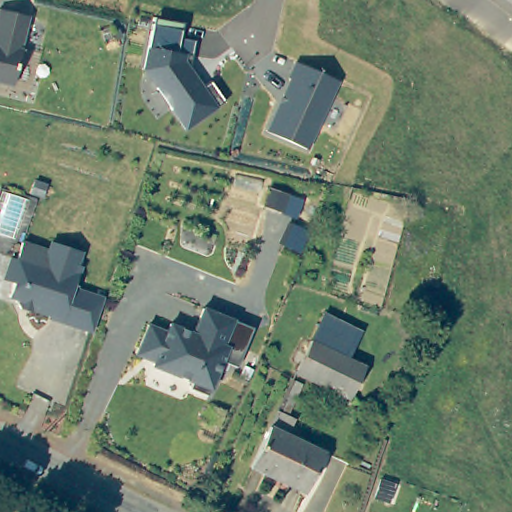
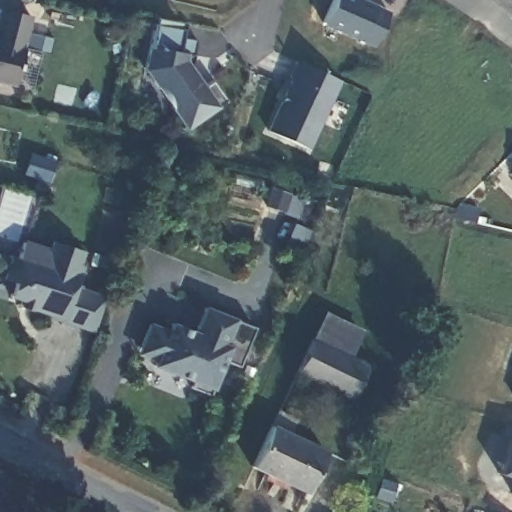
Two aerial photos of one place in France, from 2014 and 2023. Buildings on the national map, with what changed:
new [(331,0),(363,0),(373,4),(388,14),(373,46),(360,40),(322,22),(331,0)]
unchanged [(26,21),(26,24),(10,91),(5,90),(0,89),(0,16),(21,20),(26,21)]
unchanged [(196,44),(194,60),(186,59),(185,65),(203,91),(212,85),(227,106),(187,134),(154,86),(156,75),(145,73),(154,28),(155,21),(184,26),(183,34),(182,41),(196,44)]
unchanged [(337,84),(307,152),(267,135),(281,105),(282,106),(285,100),(283,99),(291,82),(288,81),(295,65),(337,84)]
new [(507,155),(512,151),(512,161),(507,155)]
unchanged [(297,217),(262,206),(270,189),(303,200),(297,217)]
unchanged [(298,254),(278,244),(288,222),(309,231),(298,254)]
unchanged [(33,312),(24,310),(22,306),(24,301),(12,298),(17,284),(7,281),(15,258),(20,260),(26,243),(52,252),(55,243),(86,253),(81,266),(85,267),(77,290),(107,300),(106,305),(97,333),(52,319),(52,316),(36,311),(33,312)]
unchanged [(321,310),(353,326),(341,352),(307,336),(321,310)]
unchanged [(138,351),(148,327),(166,335),(169,326),(192,336),(202,311),(252,332),(236,371),(221,365),(207,400),(188,391),(191,385),(152,368),(134,361),(138,351)]
unchanged [(341,352),(362,362),(347,395),(343,394),(341,401),(325,395),(327,386),(292,370),(307,336),(341,352)]
unchanged [(327,450),(308,491),(254,463),(273,423),(327,450)]
new [(508,442),(512,444),(512,482),(497,477),(508,442)]
new [(511,497),(512,494),(512,497),(511,497)]

